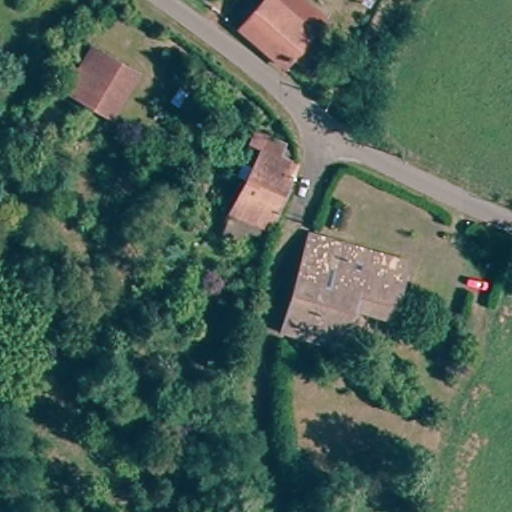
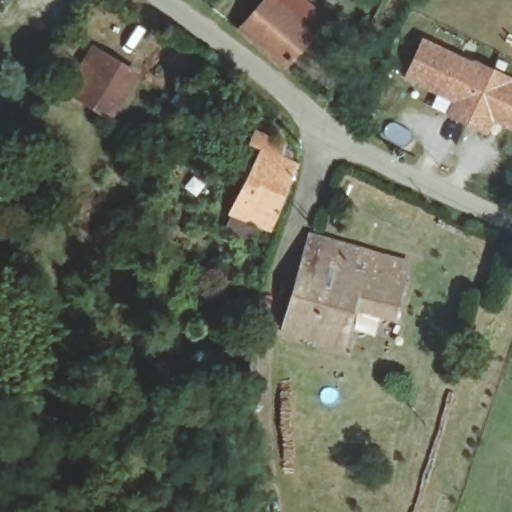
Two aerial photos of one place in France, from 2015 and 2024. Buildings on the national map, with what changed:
unchanged [(267,0),(303,0),(323,15),(314,29),(284,69),(240,36),(267,0)]
unchanged [(378,0),(375,7),(361,0),(378,0)]
new [(423,40),(491,73),(467,123),(449,114),(455,100),(406,76),(423,40)]
unchanged [(75,92),(64,84),(95,46),(120,66),(134,78),(103,115),(75,92)]
new [(512,82),(512,127),(492,118),(485,131),(467,123),(491,73),(512,82)]
unchanged [(232,222),(236,212),(246,183),(232,178),(245,140),(250,126),(285,138),(280,153),(295,158),(272,225),(254,219),(250,228),(232,222)]
unchanged [(353,305),(340,348),(278,332),(300,268),(310,234),(372,251),(406,260),(403,274),(394,315),(353,305)]

